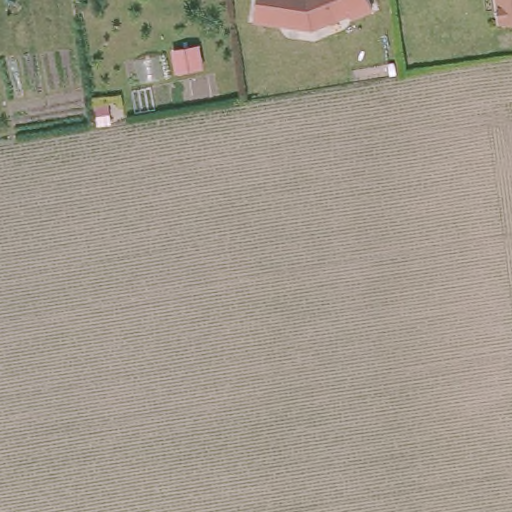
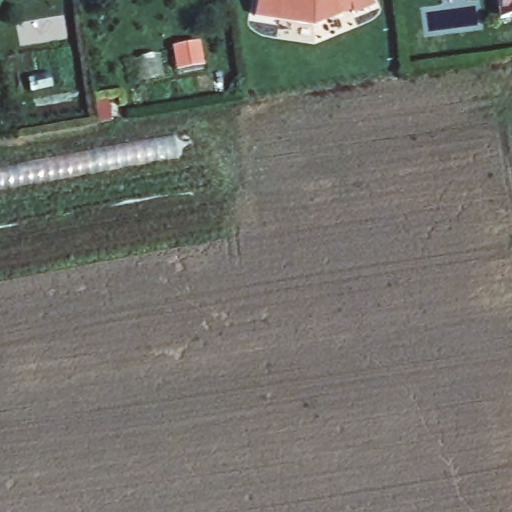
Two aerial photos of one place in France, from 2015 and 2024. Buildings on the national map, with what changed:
unchanged [(342,18),(340,14),(303,29),(245,20),(248,0),(363,0),(367,9),(342,18)]
unchanged [(500,19),(498,0),(512,0),(512,17),(500,19)]
new [(0,188),(0,162),(175,132),(177,155),(0,188)]

